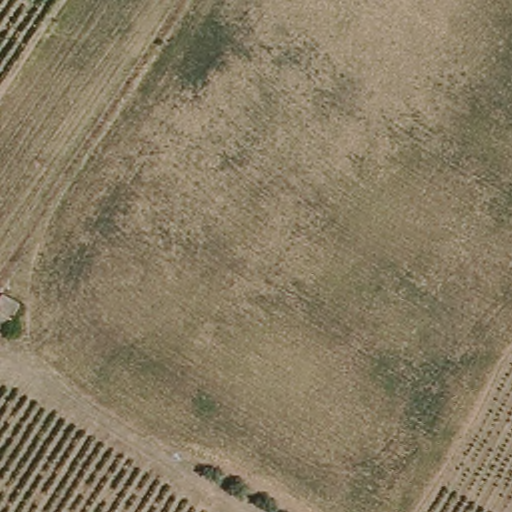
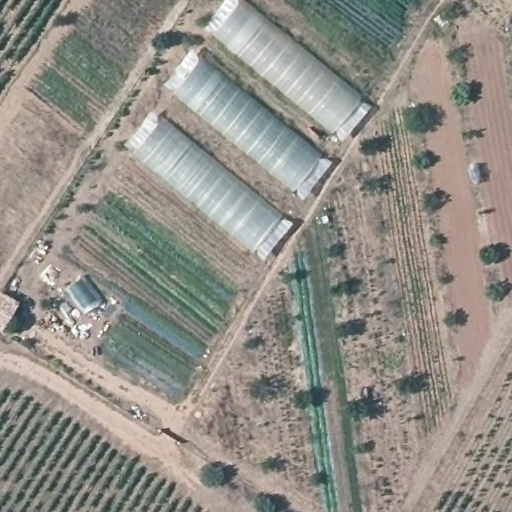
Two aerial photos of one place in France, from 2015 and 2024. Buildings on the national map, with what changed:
new [(360,98),(333,134),(212,34),(241,0),(360,98)]
new [(322,158),(294,195),(174,92),(201,58),(322,158)]
new [(283,218),(253,253),(133,156),(162,119),(283,218)]
unchanged [(0,300),(16,309),(1,336),(0,335),(0,300)]

